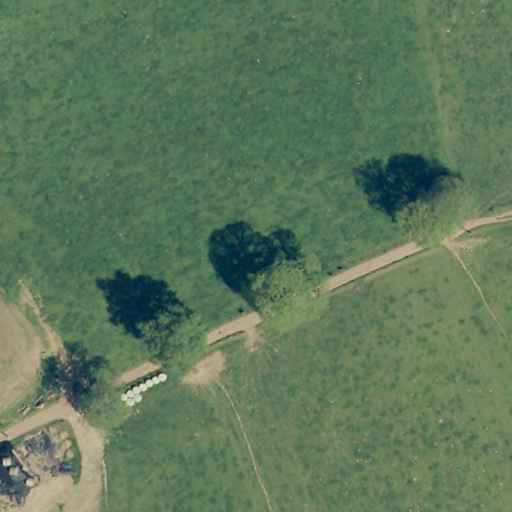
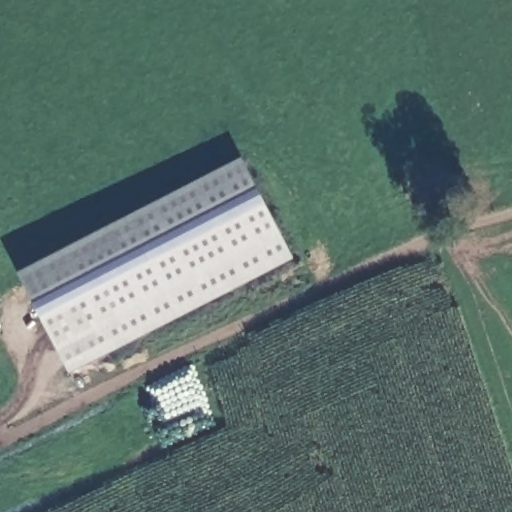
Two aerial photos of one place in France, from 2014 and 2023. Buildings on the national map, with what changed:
new [(17,272),(240,157),(293,258),(69,372),(17,272)]

